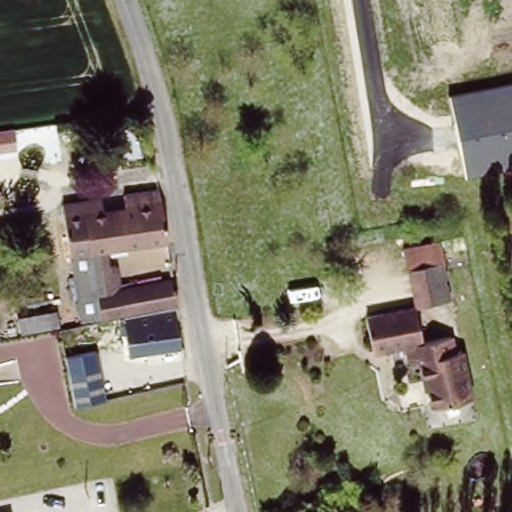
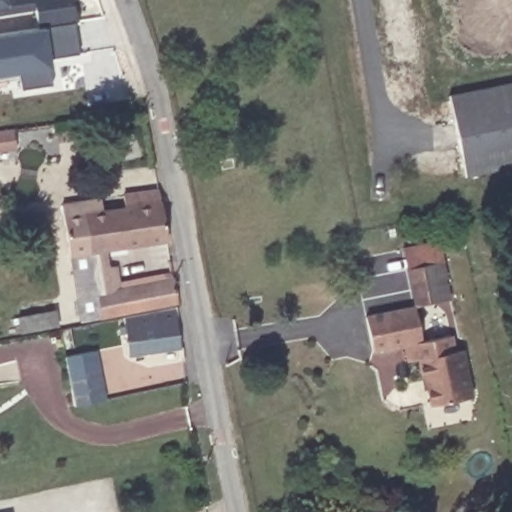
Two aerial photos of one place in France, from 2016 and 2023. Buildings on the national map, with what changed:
new [(38,27),(35,9),(0,15),(0,0),(72,0),(79,20),(77,20),(38,27)]
new [(83,54),(50,59),(54,86),(0,94),(0,33),(38,27),(77,20),(83,54)]
unchanged [(451,95),(512,83),(512,166),(468,175),(451,95)]
unchanged [(102,194),(105,208),(125,204),(123,191),(158,185),(165,237),(97,247),(98,264),(113,263),(117,286),(172,274),(177,297),(86,316),(82,317),(62,200),(68,200),(102,194)]
unchanged [(405,245),(440,239),(450,299),(416,305),(405,245)]
unchanged [(423,338),(457,330),(468,394),(425,404),(412,343),(372,349),(364,308),(414,301),(423,338)]
unchanged [(58,325),(22,332),(18,318),(55,312),(58,325)]
unchanged [(155,352),(153,339),(127,342),(127,334),(121,334),(120,327),(177,319),(181,348),(155,352)]
unchanged [(105,391),(81,396),(77,379),(102,374),(105,391)]

